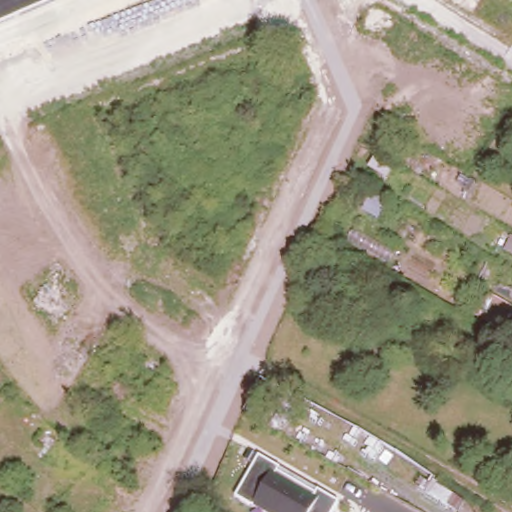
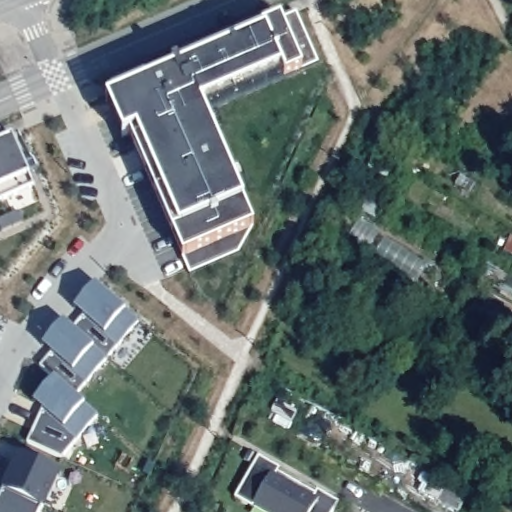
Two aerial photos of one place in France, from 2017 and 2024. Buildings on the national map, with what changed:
new [(117,112),(110,94),(137,82),(142,80),(145,85),(173,73),(170,68),(295,14),(317,65),(202,115),(210,131),(238,197),(252,229),(238,255),(188,276),(117,112)]
new [(122,140),(105,104),(105,102),(112,100),(117,112),(128,137),(122,140)]
new [(12,137),(23,164),(31,160),(37,172),(28,176),(33,187),(33,188),(0,203),(0,142),(12,137)]
unchanged [(392,162),(383,176),(366,166),(373,152),(392,162)]
unchanged [(383,201),(373,218),(354,207),(364,190),(383,201)]
demolished [(65,293),(49,317),(28,302),(45,279),(65,293)]
new [(50,337),(62,322),(72,330),(82,317),(73,309),(81,300),(95,285),(139,322),(78,393),(42,365),(50,354),(42,346),(50,337)]
new [(33,403),(40,394),(53,379),(39,367),(42,365),(78,393),(75,397),(97,415),(68,451),(61,459),(27,443),(35,425),(42,411),(33,403)]
new [(18,456),(58,474),(42,511),(2,492),(0,492),(0,473),(8,477),(18,456)]
unchanged [(259,512),(235,498),(258,457),(338,503),(333,512),(259,512)]
new [(42,511),(41,512),(0,512),(0,496),(2,492),(42,511)]

